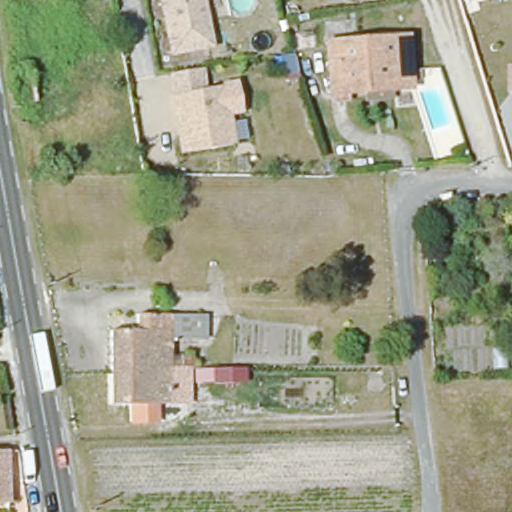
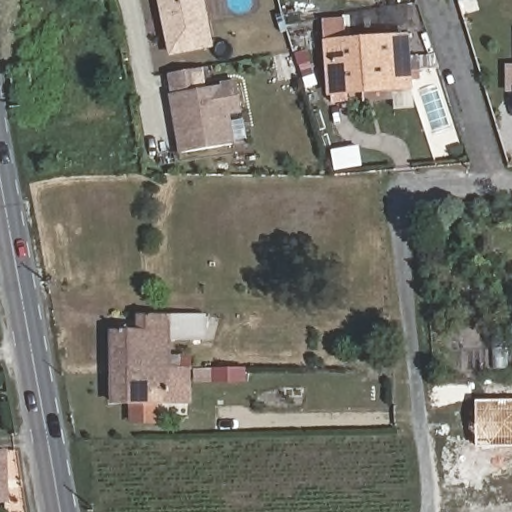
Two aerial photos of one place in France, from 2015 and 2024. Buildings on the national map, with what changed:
unchanged [(178,55),(166,0),(206,0),(215,47),(178,55)]
unchanged [(412,81),(375,81),(368,92),(331,94),(330,43),(411,41),(412,81)]
unchanged [(508,66),(512,66),(512,94),(508,94),(508,66)]
unchanged [(178,97),(184,140),(186,156),(178,158),(167,73),(206,68),(209,91),(178,97)]
unchanged [(247,114),(231,115),(238,148),(186,156),(178,97),(209,91),(243,86),(247,114)]
unchanged [(112,331),(136,330),(137,314),(179,310),(179,314),(203,313),(205,340),(180,341),(167,341),(168,373),(114,378),(112,331)]
unchanged [(180,403),(115,410),(114,378),(168,373),(181,372),(180,403)]
new [(512,400),(512,447),(476,447),(475,401),(512,400)]
unchanged [(0,506),(0,452),(2,452),(7,505),(0,506)]

